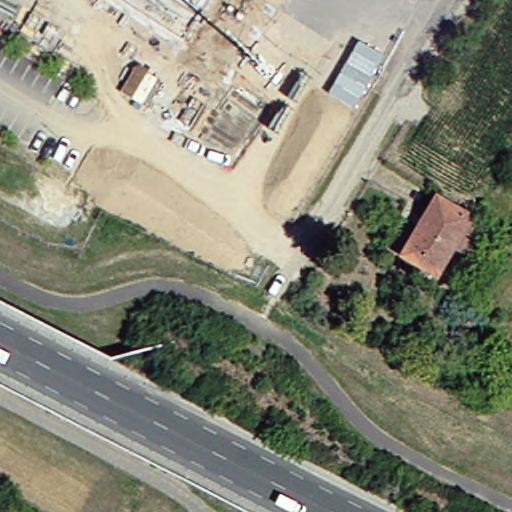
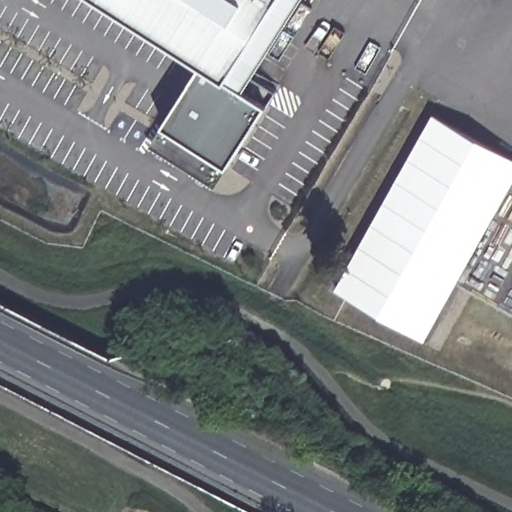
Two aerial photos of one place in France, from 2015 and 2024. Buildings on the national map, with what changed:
new [(275,92),(265,104),(227,164),(214,186),(152,147),(163,124),(202,62),(107,0),(301,0),(253,76),(275,92)]
demolished [(160,28),(136,16),(143,0),(165,0),(172,3),(160,28)]
new [(512,158),(512,183),(426,339),(334,289),(432,115),(512,158)]
demolished [(240,144),(208,198),(176,180),(207,125),(240,144)]
demolished [(155,175),(139,203),(102,183),(117,155),(155,175)]
demolished [(436,275),(402,253),(437,196),(471,216),(467,222),(453,245),(436,275)]

